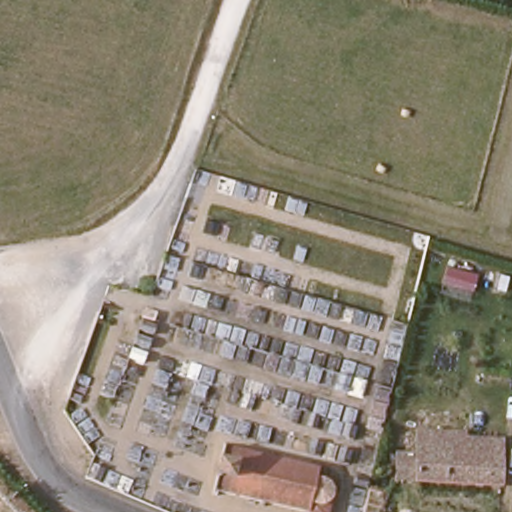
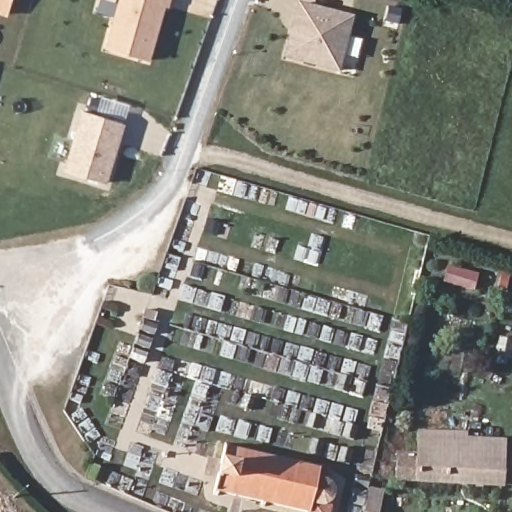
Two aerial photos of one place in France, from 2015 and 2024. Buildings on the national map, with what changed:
new [(0,14),(0,0),(11,0),(7,16),(0,14)]
new [(105,48),(119,0),(171,0),(153,62),(105,48)]
new [(339,73),(283,58),(297,1),(354,16),(339,73)]
new [(124,124),(107,184),(62,171),(82,110),(124,124)]
unchanged [(472,441),(506,443),(505,485),(399,482),(400,455),(421,455),(422,435),(472,436),(472,441)]
unchanged [(322,478),(332,481),(337,487),(331,512),(308,512),(310,509),(270,501),(270,504),(262,503),(265,499),(233,491),(227,490),(224,489),(224,494),(217,493),(231,444),(236,446),(236,451),(276,459),(276,456),(283,458),(282,462),(320,470),(320,467),(326,468),(322,478)]
unchanged [(376,489),(390,493),(384,512),(371,512),(376,489)]

